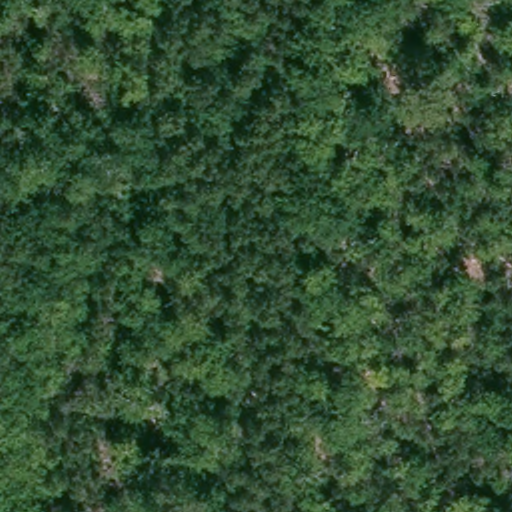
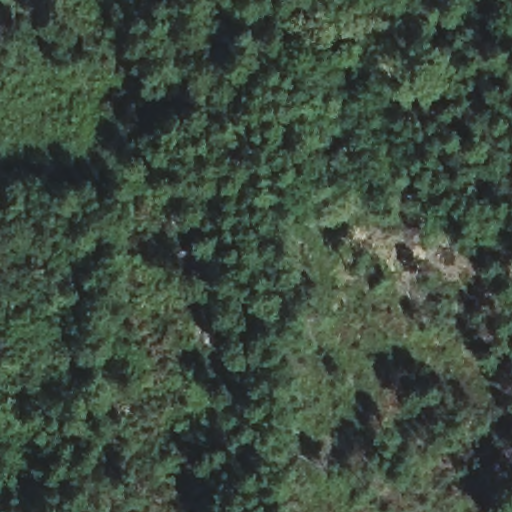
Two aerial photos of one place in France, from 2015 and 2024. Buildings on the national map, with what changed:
[]

